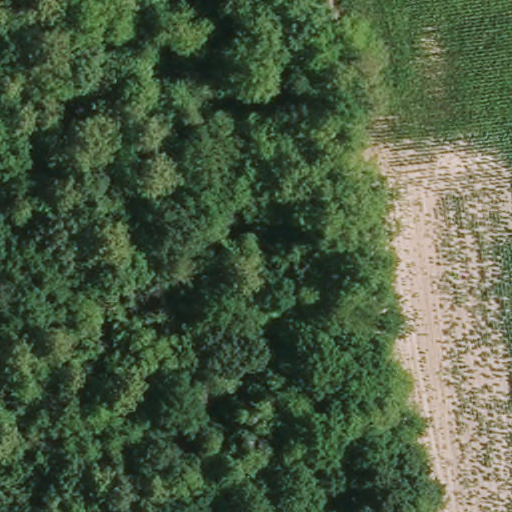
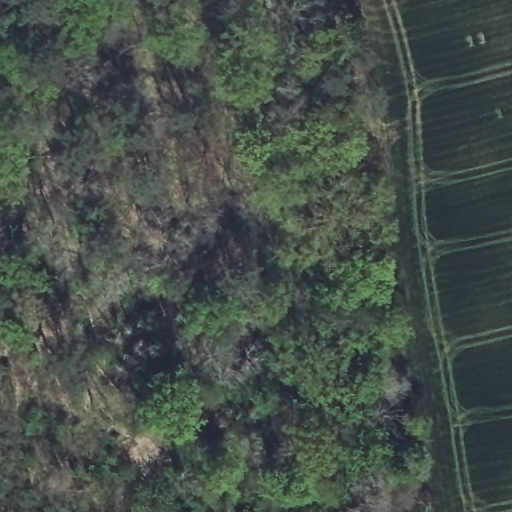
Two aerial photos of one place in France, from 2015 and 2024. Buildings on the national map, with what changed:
[]

